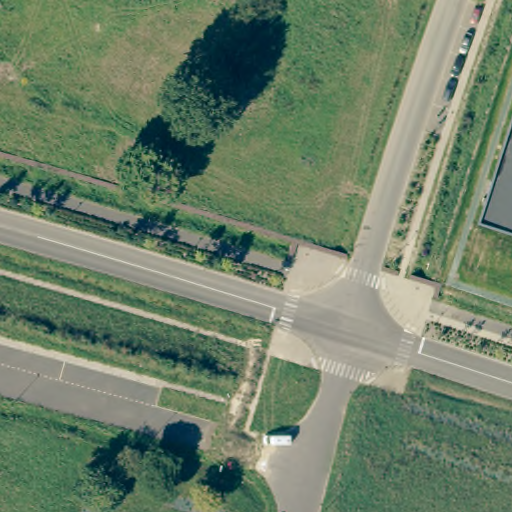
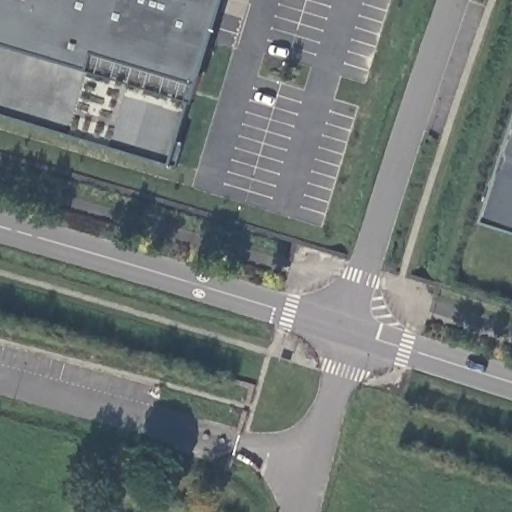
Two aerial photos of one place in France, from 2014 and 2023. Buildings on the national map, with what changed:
new [(192,100),(173,163),(0,110),(0,1),(0,0),(228,0),(197,102),(192,100)]
unchanged [(512,135),(512,228),(485,220),(512,135)]

